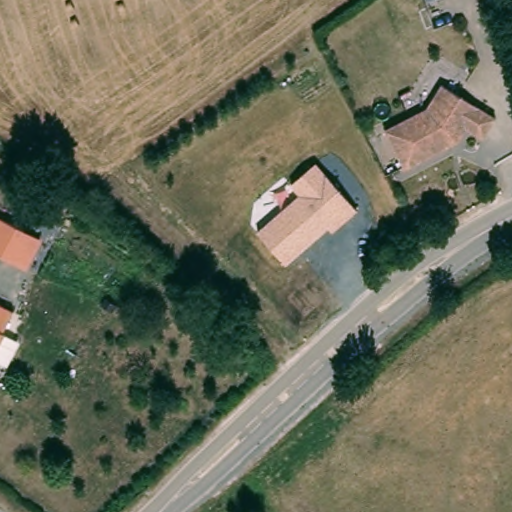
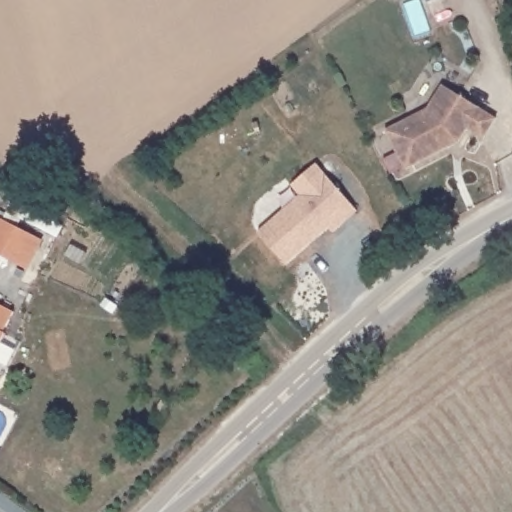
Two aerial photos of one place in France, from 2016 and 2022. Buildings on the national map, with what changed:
unchanged [(437,150),(406,167),(384,128),(422,107),(426,105),(440,82),(494,114),(482,135),(466,125),(458,139),(449,144),(437,150)]
unchanged [(287,184),(314,162),(354,211),(330,232),(325,227),(282,265),(254,232),(296,196),(287,184)]
unchanged [(41,241),(27,270),(0,256),(0,219),(41,241)]
unchanged [(15,309),(5,329),(7,331),(0,343),(0,301),(15,309)]

